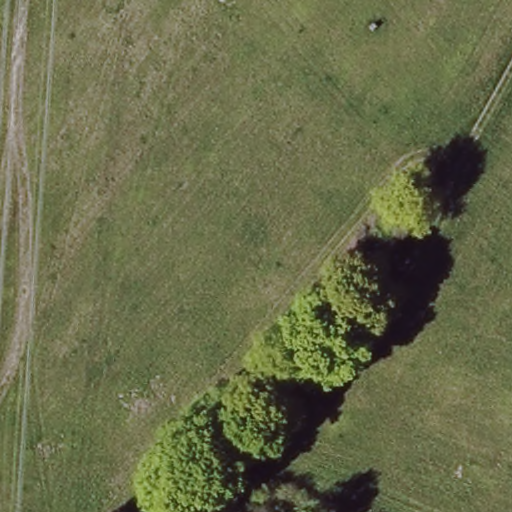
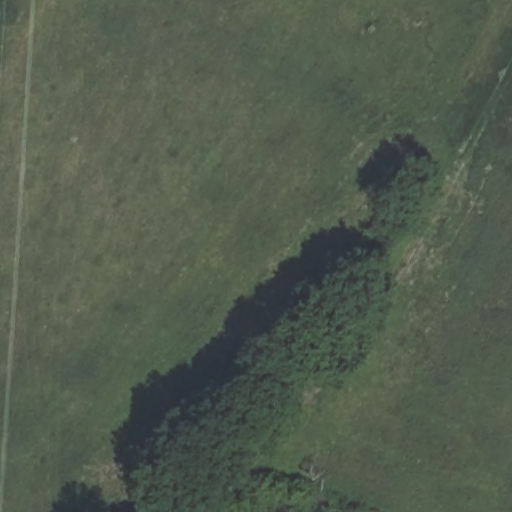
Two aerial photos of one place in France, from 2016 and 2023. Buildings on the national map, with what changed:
[]

